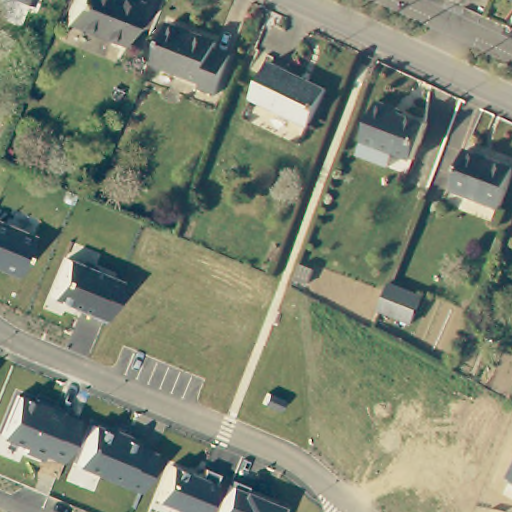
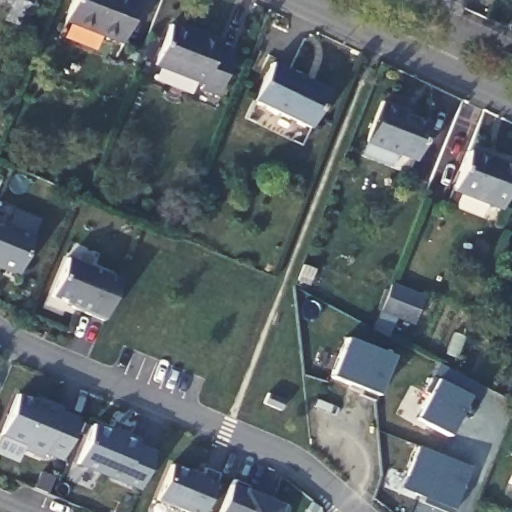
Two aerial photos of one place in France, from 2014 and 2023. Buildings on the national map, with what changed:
unchanged [(119,44),(63,20),(71,0),(132,0),(136,1),(119,44)]
unchanged [(169,25),(216,45),(214,50),(230,57),(214,97),(198,90),(201,81),(154,64),(169,25)]
unchanged [(326,90),(308,127),(252,100),(269,62),(326,90)]
unchanged [(359,157),(380,102),(397,109),(395,112),(425,125),(410,162),(392,155),(387,168),(359,157)]
unchanged [(512,166),(512,169),(497,207),(451,189),(466,149),(512,166)]
unchanged [(17,274),(0,267),(0,220),(32,234),(17,274)]
unchanged [(105,319),(48,298),(63,257),(119,280),(105,319)]
unchanged [(411,324),(379,311),(389,285),(421,299),(411,324)]
unchanged [(388,336),(371,330),(379,311),(396,318),(388,336)]
new [(391,356),(376,395),(330,376),(345,338),(391,356)]
new [(427,395),(423,392),(439,364),(476,382),(468,397),(448,436),(414,419),(427,395)]
unchanged [(60,460),(0,437),(0,428),(13,395),(75,420),(60,460)]
unchanged [(137,490),(73,465),(89,424),(152,450),(137,490)]
new [(453,512),(445,512),(422,502),(424,498),(401,488),(418,446),(470,467),(453,512)]
unchanged [(202,512),(189,512),(153,497),(166,463),(214,482),(202,512)]
unchanged [(512,475),(512,479),(510,478),(512,475)]
unchanged [(279,512),(219,512),(229,484),(282,505),(279,512)]

